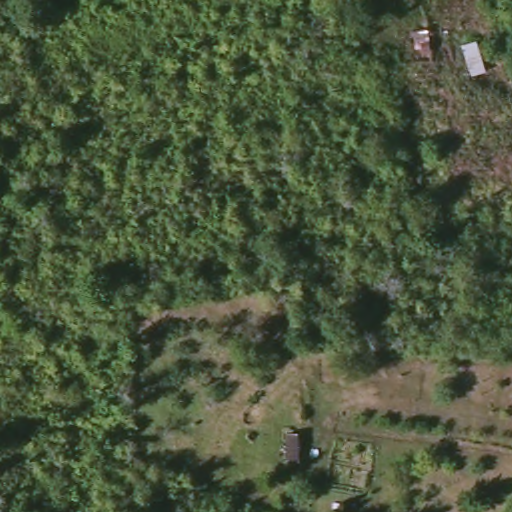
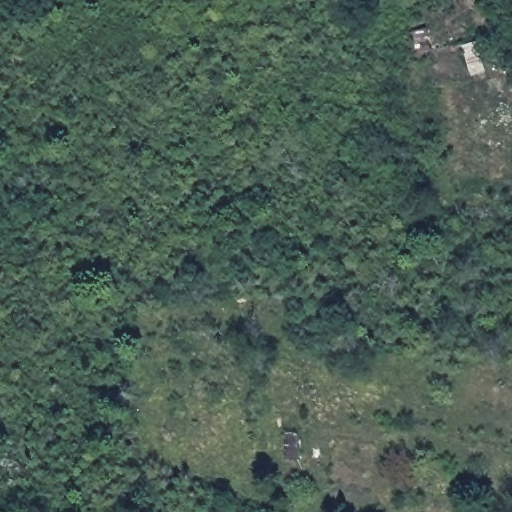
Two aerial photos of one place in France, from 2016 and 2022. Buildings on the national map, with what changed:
unchanged [(462,46),(477,40),(489,70),(472,78),(462,46)]

